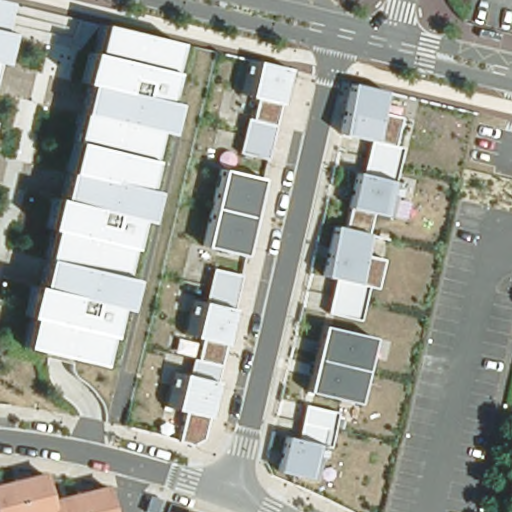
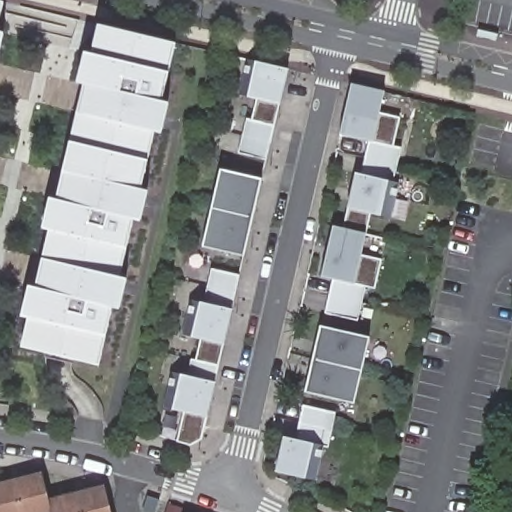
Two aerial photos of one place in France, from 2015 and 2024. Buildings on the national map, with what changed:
unchanged [(5,1),(0,26),(0,0),(5,1)]
unchanged [(169,71),(162,101),(169,103),(162,133),(155,131),(149,159),(140,189),(148,192),(142,220),(134,219),(129,245),(121,275),(127,277),(121,309),(115,307),(108,335),(101,366),(22,348),(31,318),(21,316),(29,285),(40,287),(54,230),(41,227),(49,197),(61,199),(67,174),(60,173),(67,139),(75,141),(81,112),(88,84),(76,81),(84,50),(92,52),(99,24),(177,42),(169,71)]
unchanged [(6,32),(0,57),(0,31),(6,32)]
unchanged [(281,103),(267,160),(240,154),(249,118),(254,119),(260,99),(245,95),(252,59),(288,68),(281,103)]
unchanged [(366,286),(358,319),(326,312),(334,278),(321,275),(335,225),(348,228),(355,208),(348,207),(357,172),(365,174),(372,141),(339,134),(351,83),(383,89),(378,113),(400,118),(393,145),(402,148),(396,179),(402,181),(394,218),(375,212),(369,233),(361,256),(382,259),(376,288),(366,286)]
unchanged [(245,255),(204,245),(221,169),(262,178),(245,255)]
unchanged [(233,309),(225,344),(217,381),(208,417),(202,438),(190,445),(180,442),(185,412),(167,408),(176,372),(197,377),(206,340),(187,335),(195,300),(207,302),(214,268),(240,274),(233,309)]
unchanged [(355,401),(307,391),(322,324),(370,335),(355,401)]
unchanged [(334,429),(302,423),(306,405),(337,412),(334,429)]
unchanged [(329,446),(321,482),(276,472),(284,436),(329,446)]
unchanged [(42,471),(49,498),(104,484),(112,512),(0,512),(0,481),(42,471)]

